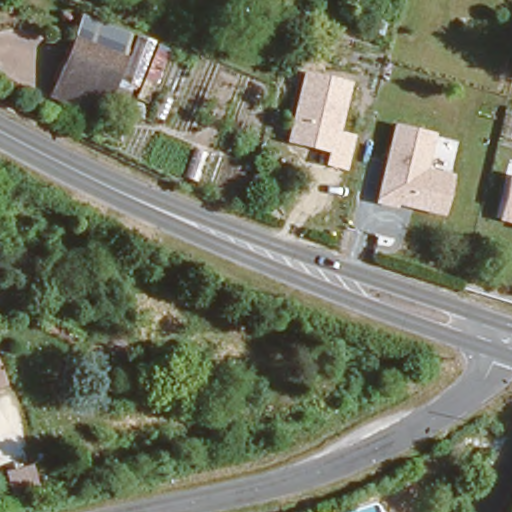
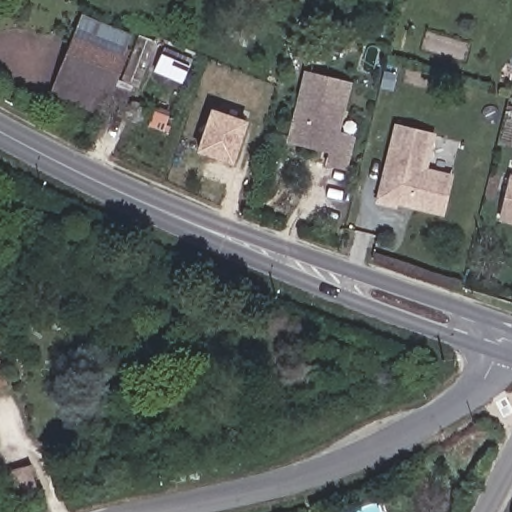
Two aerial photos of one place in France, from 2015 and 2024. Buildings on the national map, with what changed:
unchanged [(80,12),(132,35),(124,53),(71,31),(80,12)]
unchanged [(124,53),(124,55),(100,111),(47,88),(71,31),(124,53)]
unchanged [(340,130),(353,134),(345,168),(325,165),(327,152),(286,142),(303,70),(350,81),(340,130)]
new [(197,153),(211,109),(248,122),(235,164),(197,153)]
unchanged [(427,167),(455,175),(443,217),(397,205),(396,209),(376,204),(395,122),(436,133),(427,167)]
unchanged [(509,174),(512,175),(512,223),(498,219),(509,174)]
unchanged [(0,362),(2,362),(9,380),(0,383),(0,361),(0,362)]
unchanged [(37,492),(10,500),(0,471),(30,462),(37,492)]

